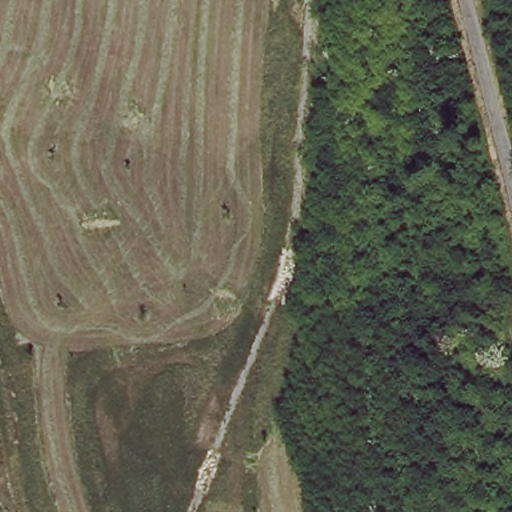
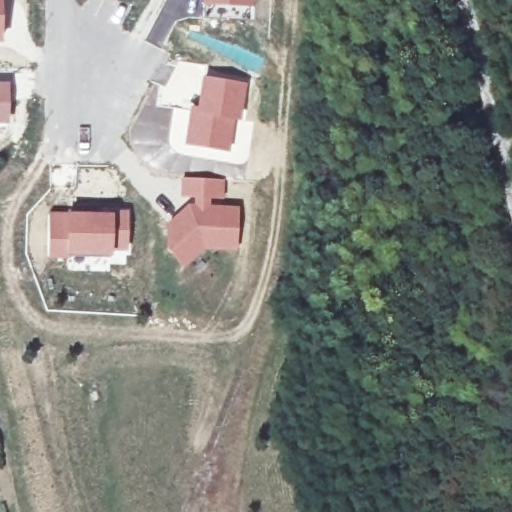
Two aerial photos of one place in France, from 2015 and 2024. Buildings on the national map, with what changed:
new [(0,43),(0,0),(3,0),(2,43),(0,43)]
new [(254,0),(254,6),(200,5),(200,0),(254,0)]
new [(189,106),(195,108),(201,76),(246,81),(231,154),(182,146),(189,106)]
new [(9,125),(0,125),(0,81),(9,81),(9,125)]
new [(226,181),(225,200),(211,200),(211,206),(224,207),(230,213),(229,234),(184,272),(166,254),(167,225),(189,206),(194,206),(194,199),(180,199),(182,179),(226,181)]
new [(128,210),(127,251),(111,251),(111,257),(47,259),(47,211),(112,211),(128,210)]

